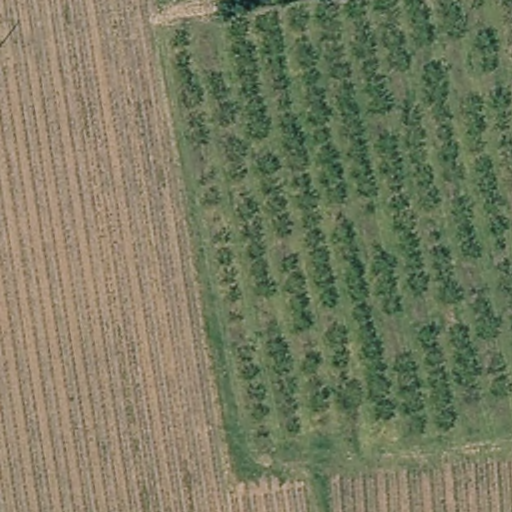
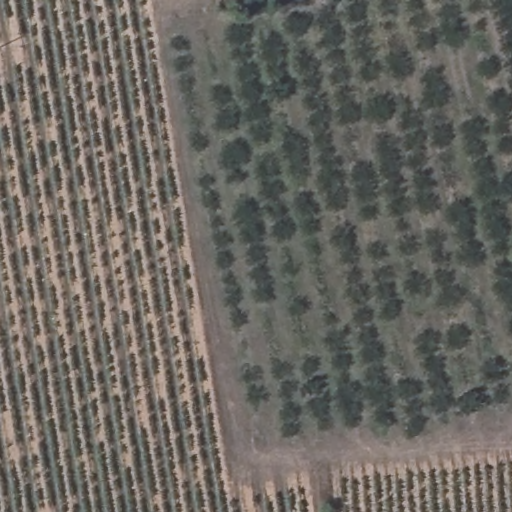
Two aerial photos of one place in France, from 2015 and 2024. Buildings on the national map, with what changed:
[]

